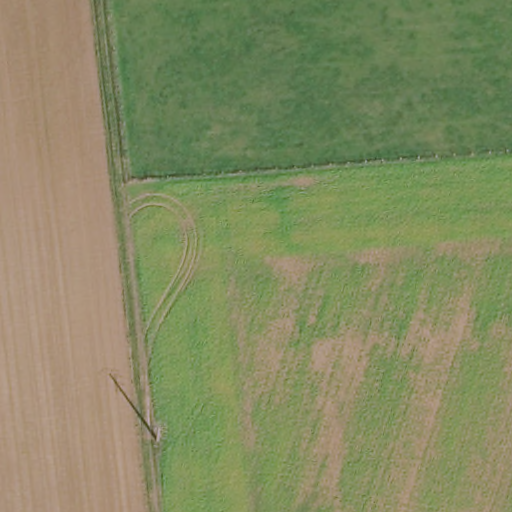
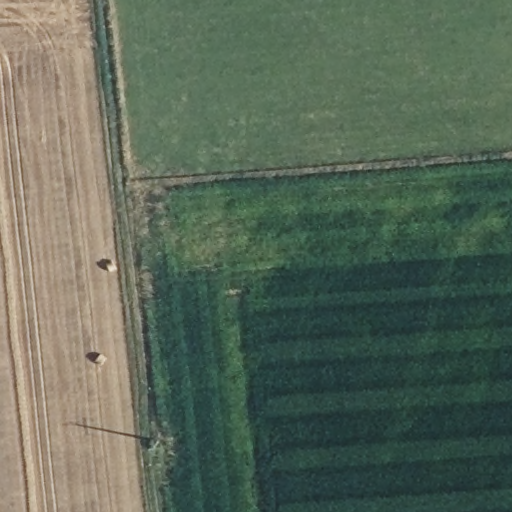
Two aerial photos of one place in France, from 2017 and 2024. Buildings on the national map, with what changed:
[]

